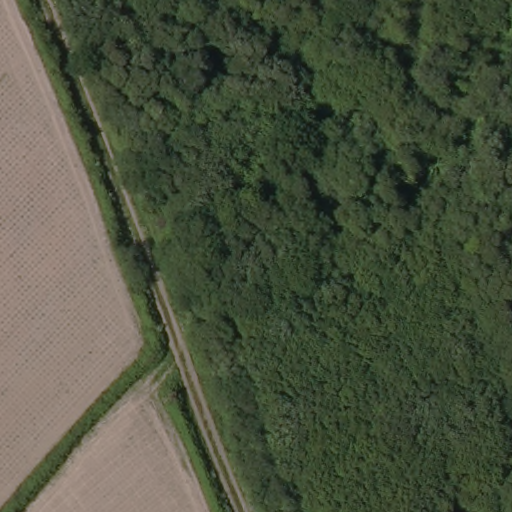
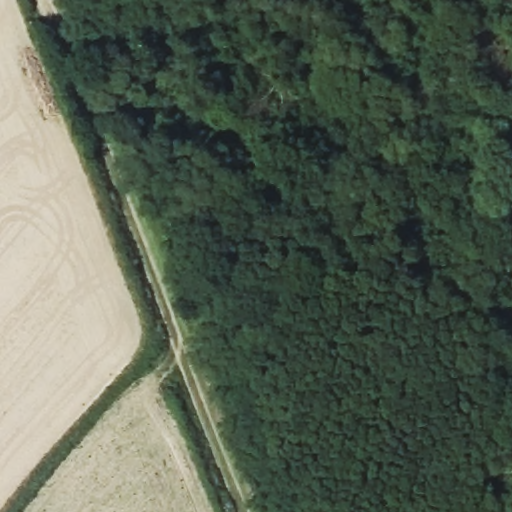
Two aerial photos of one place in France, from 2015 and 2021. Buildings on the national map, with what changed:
[]

